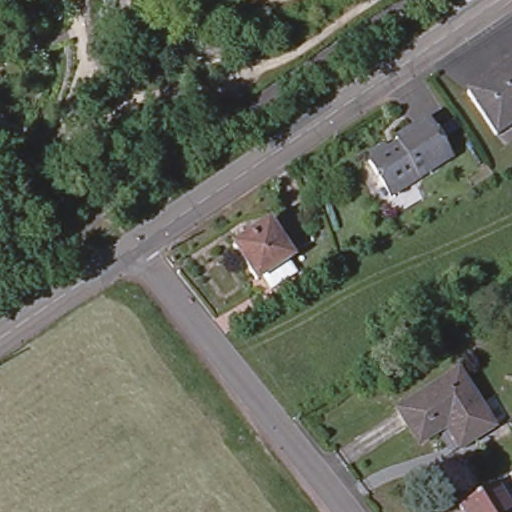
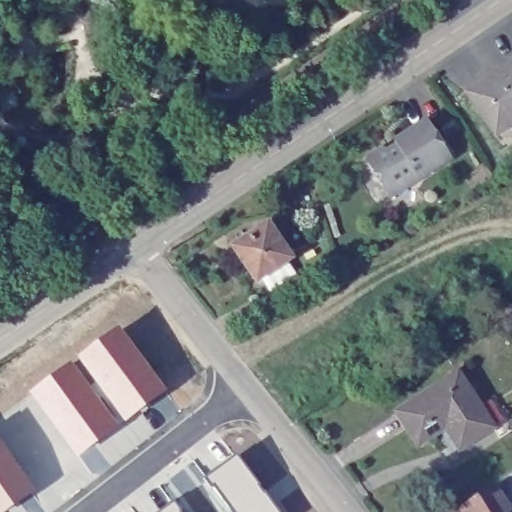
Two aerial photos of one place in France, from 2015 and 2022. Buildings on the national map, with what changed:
unchanged [(495,135),(466,94),(512,62),(512,123),(495,135)]
unchanged [(379,149),(386,149),(397,142),(395,139),(426,119),(450,157),(389,195),(367,162),(370,155),(379,149)]
unchanged [(266,221),(291,257),(255,280),(231,244),(266,221)]
new [(120,326),(168,391),(78,457),(30,391),(120,326)]
unchanged [(491,422),(457,443),(443,422),(416,440),(395,406),(456,367),(491,422)]
unchanged [(512,418),(512,427),(508,421),(512,418)]
new [(0,511),(0,446),(31,491),(0,511)]
new [(279,512),(232,512),(206,477),(237,455),(279,512)]
unchanged [(503,478),(512,493),(512,496),(505,501),(512,512),(460,512),(457,508),(503,478)]
new [(182,512),(159,512),(174,501),(182,512)]

